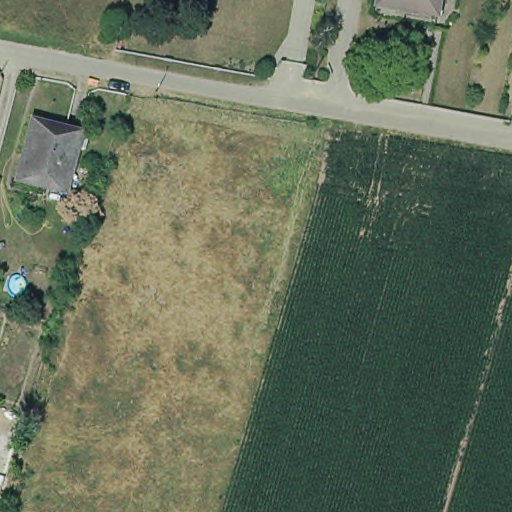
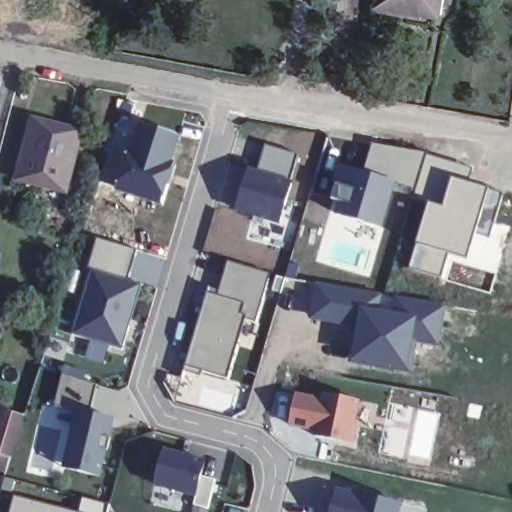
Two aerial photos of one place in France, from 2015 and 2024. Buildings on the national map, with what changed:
unchanged [(429,9),(368,0),(436,0),(434,10),(429,9)]
unchanged [(78,129),(62,190),(11,178),(27,115),(78,129)]
new [(176,131),(158,200),(113,186),(133,119),(176,131)]
new [(371,142),(424,153),(413,190),(396,184),(362,170),(371,142)]
new [(301,154),(279,222),(231,209),(243,164),(253,166),(261,143),(301,154)]
new [(308,199),(327,205),(337,163),(362,170),(396,184),(383,229),(329,212),(324,228),(301,220),(308,199)]
new [(428,201),(442,205),(451,177),(488,188),(503,192),(489,239),(476,235),(468,261),(449,255),(441,278),(408,268),(414,244),(428,201)]
new [(134,249),(126,279),(139,283),(120,351),(70,334),(94,238),(134,249)]
new [(266,275),(255,319),(244,317),(223,377),(186,366),(205,290),(216,292),(224,259),(266,275)]
new [(313,282),(384,293),(381,310),(360,307),(354,328),(307,319),(313,282)]
new [(354,328),(360,307),(381,310),(384,293),(447,304),(439,347),(414,343),(409,373),(347,363),(354,328)]
new [(318,397),(320,392),(360,400),(353,442),(286,426),(294,393),(318,397)]
new [(23,416),(6,473),(0,471),(0,409),(23,416)]
new [(113,419),(98,477),(61,469),(75,409),(113,419)]
new [(201,474),(218,481),(210,509),(188,506),(191,496),(150,486),(158,447),(203,461),(201,474)]
new [(396,512),(324,512),(330,487),(398,502),(396,512)]
new [(105,512),(8,512),(11,497),(77,510),(80,499),(108,504),(105,512)]
new [(248,512),(222,512),(224,504),(248,509),(248,512)]

